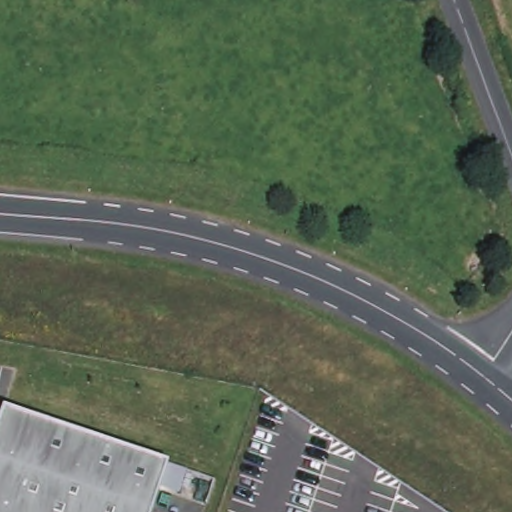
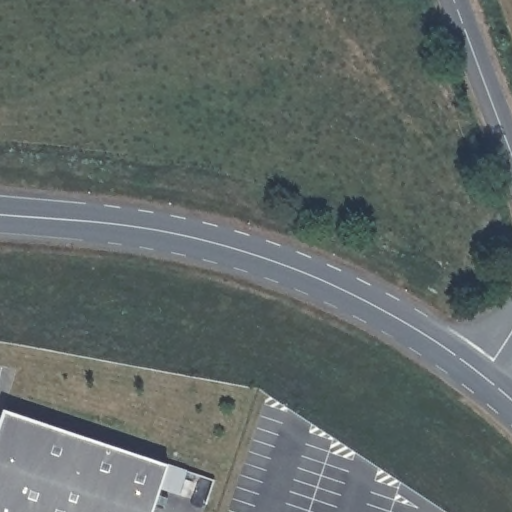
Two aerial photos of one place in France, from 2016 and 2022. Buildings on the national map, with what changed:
unchanged [(0,416),(2,408),(168,463),(187,470),(180,493),(160,487),(152,512),(0,512),(0,416)]

